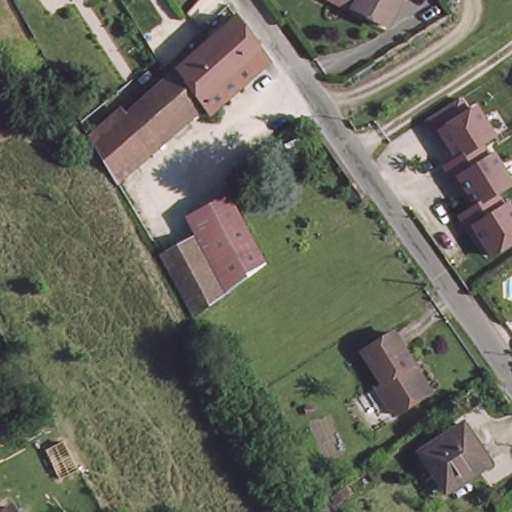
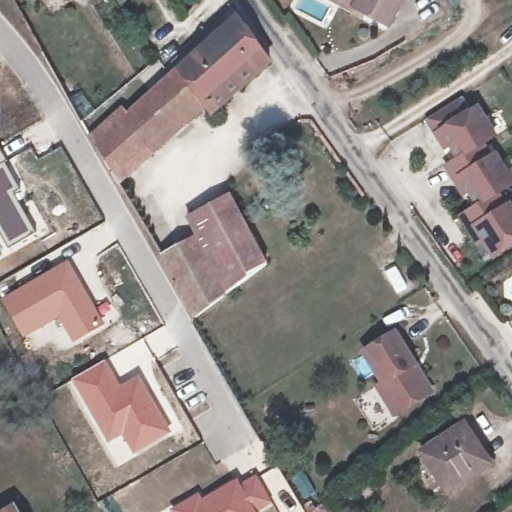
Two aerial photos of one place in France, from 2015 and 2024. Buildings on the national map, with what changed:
unchanged [(390,28),(340,0),(405,0),(390,28)]
unchanged [(159,150),(129,104),(248,13),(279,56),(159,150)]
unchanged [(124,96),(129,104),(159,150),(122,179),(95,131),(91,123),(124,96)]
unchanged [(453,164),(460,159),(438,122),(478,98),(502,136),(492,141),(512,171),(512,188),(506,191),(512,200),(512,249),(495,260),(463,213),(478,205),(453,164)]
new [(15,193),(37,234),(6,251),(0,241),(0,148),(7,158),(21,189),(15,193)]
unchanged [(264,265),(263,266),(227,293),(194,235),(197,233),(187,214),(213,199),(223,194),(234,213),(264,265)]
unchanged [(194,235),(227,293),(195,317),(165,271),(157,257),(194,235)]
new [(67,258),(95,306),(107,301),(112,310),(102,317),(105,324),(71,343),(57,318),(22,337),(0,300),(0,298),(67,258)]
unchanged [(431,393),(399,414),(381,387),(386,383),(365,353),(395,332),(416,363),(435,390),(431,393)]
new [(105,359),(120,383),(139,373),(172,433),(132,455),(120,438),(107,445),(70,379),(105,359)]
unchanged [(489,460),(446,492),(417,451),(462,420),(489,460)]
new [(239,482),(255,473),(273,504),(261,512),(169,512),(168,509),(199,492),(202,497),(236,478),(239,482)]
new [(322,512),(305,512),(305,511),(317,504),(322,512)]
unchanged [(2,512),(10,508),(12,512),(2,512)]

